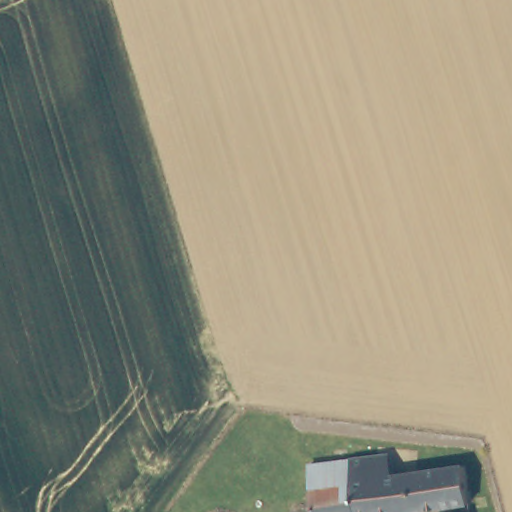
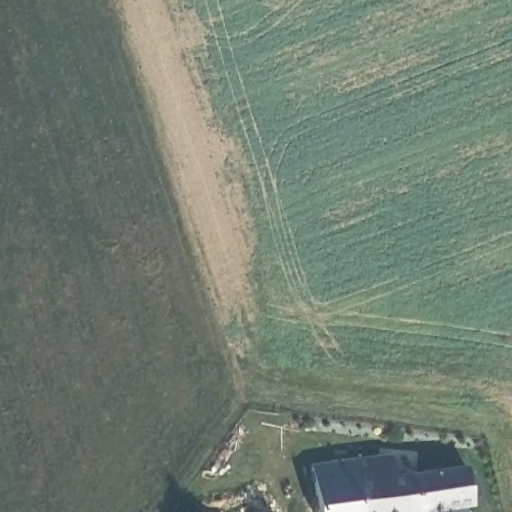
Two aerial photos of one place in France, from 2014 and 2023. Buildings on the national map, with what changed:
unchanged [(430,512),(317,512),(311,468),(391,457),(394,478),(464,469),(469,507),(430,512)]

